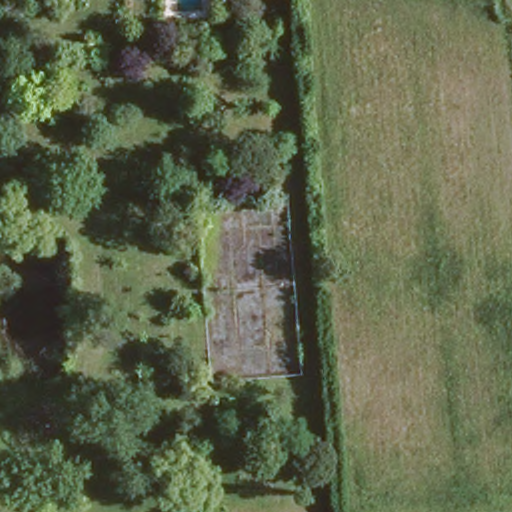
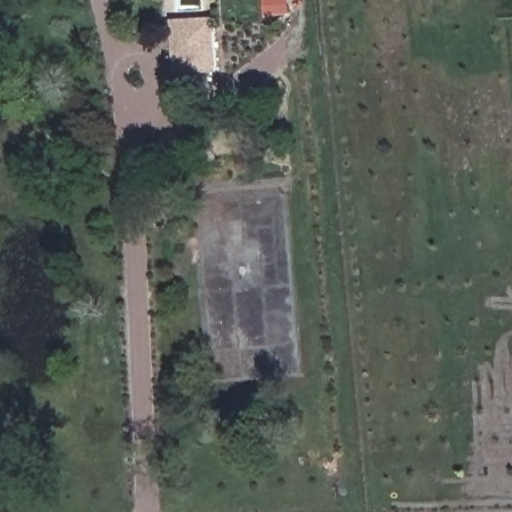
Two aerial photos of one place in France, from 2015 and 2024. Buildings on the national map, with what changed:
unchanged [(240,4),(241,0),(258,0),(258,6),(240,4)]
new [(174,76),(171,21),(215,19),(218,74),(174,76)]

